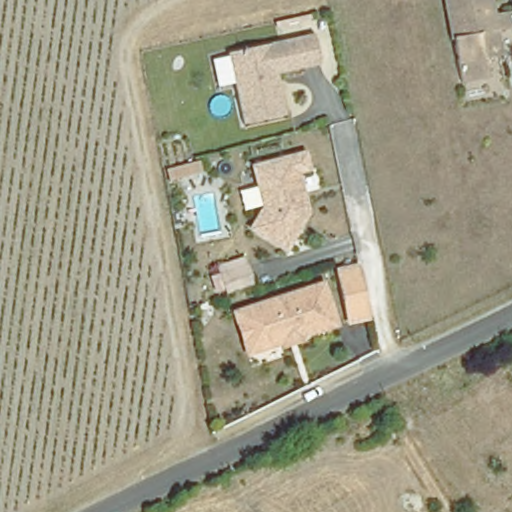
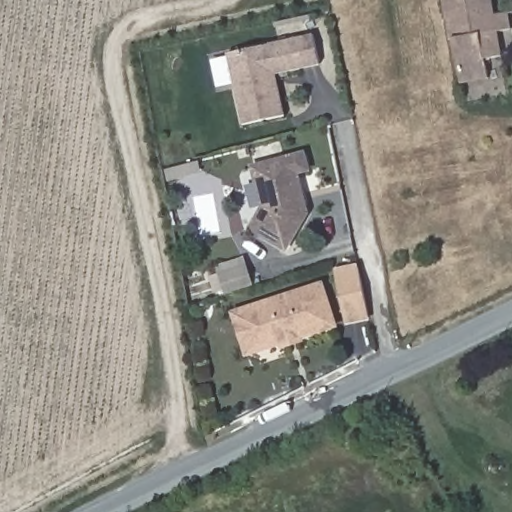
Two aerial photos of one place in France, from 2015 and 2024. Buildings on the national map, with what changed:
unchanged [(502,13),(504,28),(490,30),(496,56),(481,58),(484,75),(457,79),(442,0),(485,0),(488,15),(502,13)]
unchanged [(315,34),(323,62),(279,75),(291,116),(250,128),(230,58),(315,34)]
unchanged [(314,173),(303,176),(315,216),(295,254),(258,234),(270,212),(258,172),(309,156),(314,173)]
unchanged [(215,268),(241,259),(250,285),(229,293),(224,294),(215,268)]
unchanged [(356,267),(370,315),(350,321),(337,273),(356,267)]
unchanged [(318,291),(332,331),(260,356),(246,316),(318,291)]

